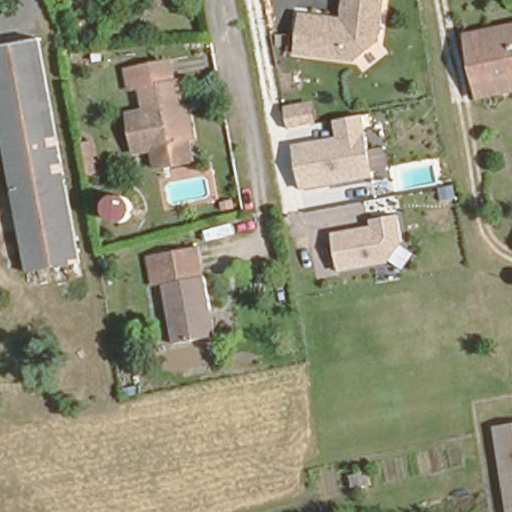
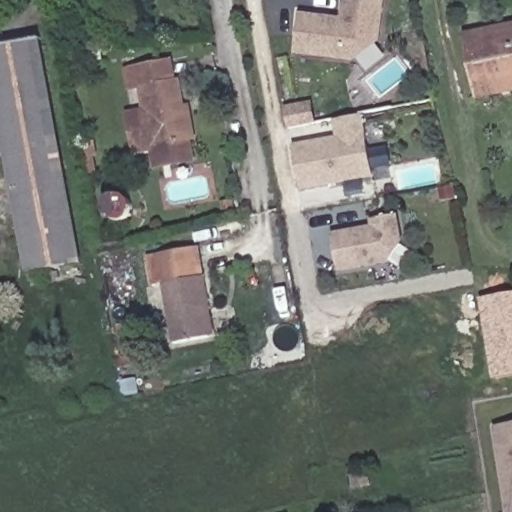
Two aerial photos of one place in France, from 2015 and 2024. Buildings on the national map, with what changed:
unchanged [(382,41),(355,61),(294,53),(300,13),(339,16),(341,0),(386,0),(382,41)]
unchanged [(469,83),(462,35),(512,28),(512,91),(471,97),(469,83)]
unchanged [(38,31),(80,263),(28,273),(0,115),(0,39),(38,31)]
unchanged [(150,162),(147,143),(127,147),(121,110),(141,107),(137,82),(125,84),(121,62),(163,55),(173,53),(176,75),(186,137),(189,156),(150,162)]
unchanged [(288,131),(283,105),(312,99),(317,124),(288,131)]
unchanged [(295,145),(337,138),(335,120),(363,114),(375,178),(302,189),(295,145)]
unchanged [(372,226),(371,219),(399,214),(405,242),(390,264),(339,274),(331,233),(372,226)]
unchanged [(204,336),(171,341),(163,285),(150,286),(146,253),(192,247),(202,246),(206,276),(210,305),(214,335),(204,336)]
new [(481,299),(512,295),(512,377),(494,379),(481,299)]
unchanged [(512,423),(512,512),(506,512),(493,425),(512,423)]

